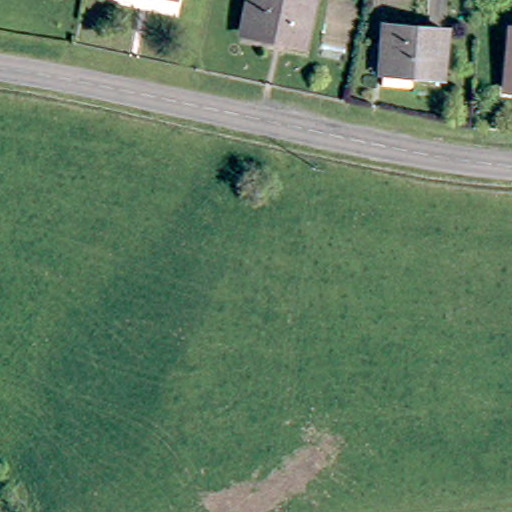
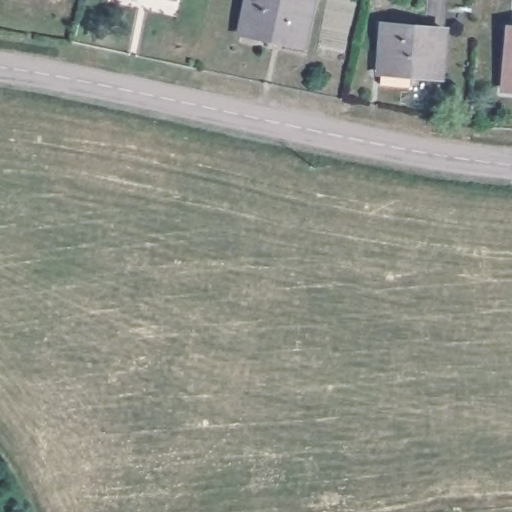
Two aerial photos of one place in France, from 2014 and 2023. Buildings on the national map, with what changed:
unchanged [(247,30),(253,0),(316,0),(318,1),(308,49),(287,44),(289,39),(247,30)]
unchanged [(390,92),(392,70),(396,43),(390,42),(392,21),(454,27),(451,76),(424,72),(422,94),(390,92)]
unchanged [(510,85),(512,50),(512,85),(510,85)]

